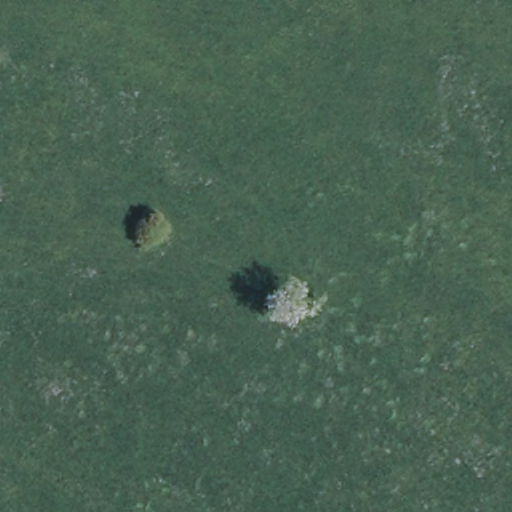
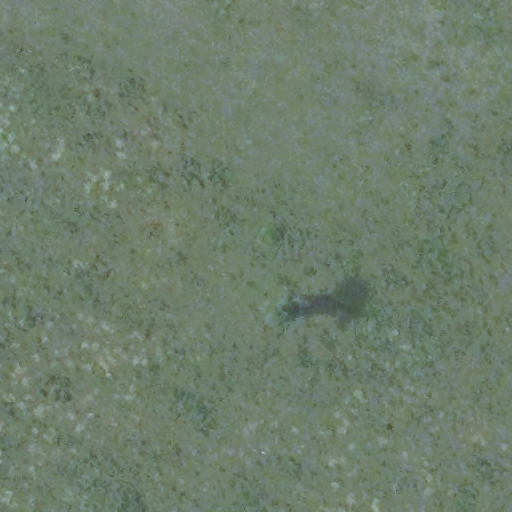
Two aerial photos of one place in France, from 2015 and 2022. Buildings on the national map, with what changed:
[]

